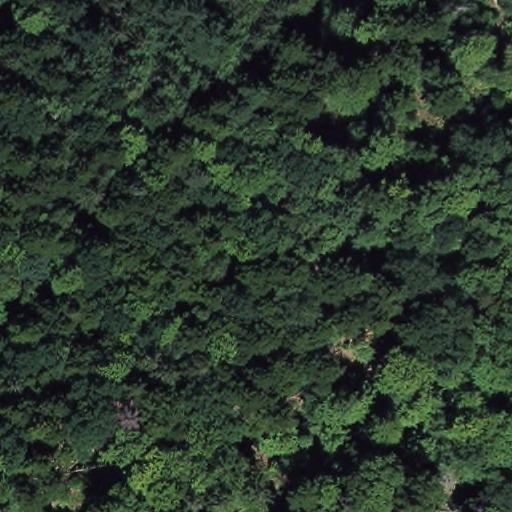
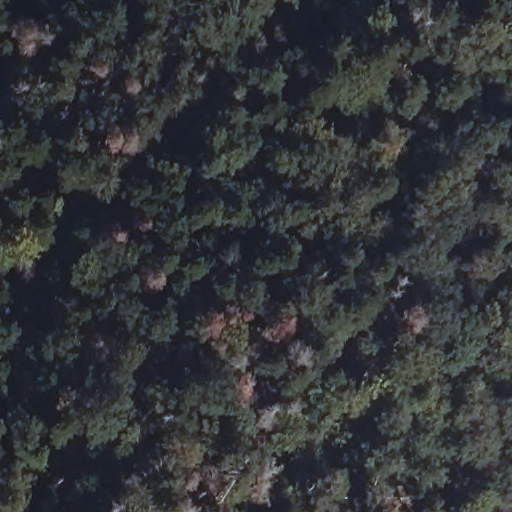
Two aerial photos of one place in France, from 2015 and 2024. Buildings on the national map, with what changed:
unchanged [(404,420),(397,442),(372,438),(377,411),(404,420)]

